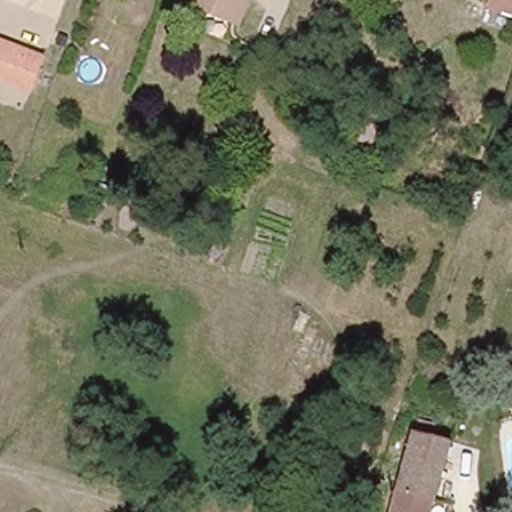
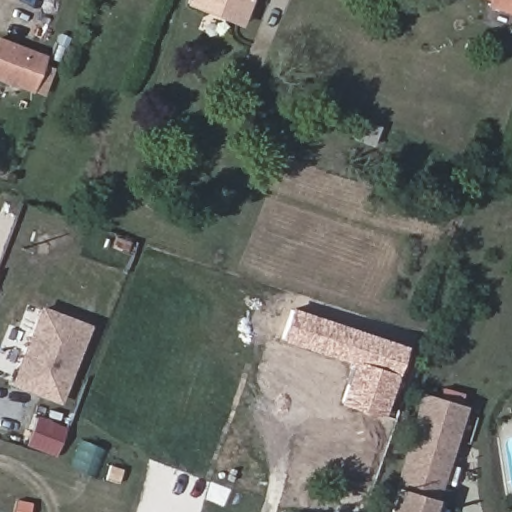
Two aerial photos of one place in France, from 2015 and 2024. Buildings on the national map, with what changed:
unchanged [(209,11),(190,3),(191,0),(252,0),(245,18),(242,25),(209,11)]
unchanged [(487,1),(487,0),(512,0),(512,10),(487,1)]
unchanged [(32,94),(0,81),(0,38),(46,56),(32,94)]
new [(52,402),(9,386),(40,304),(90,325),(57,400),(52,402)]
new [(405,345),(381,415),(337,402),(351,363),(279,340),(291,307),(405,345)]
new [(430,435),(432,427),(432,425),(417,418),(425,395),(462,407),(451,441),(430,435)]
new [(26,446),(37,416),(65,427),(53,457),(26,446)]
unchanged [(430,435),(451,441),(429,512),(391,512),(392,510),(416,422),(417,418),(432,425),(432,427),(430,435)]

